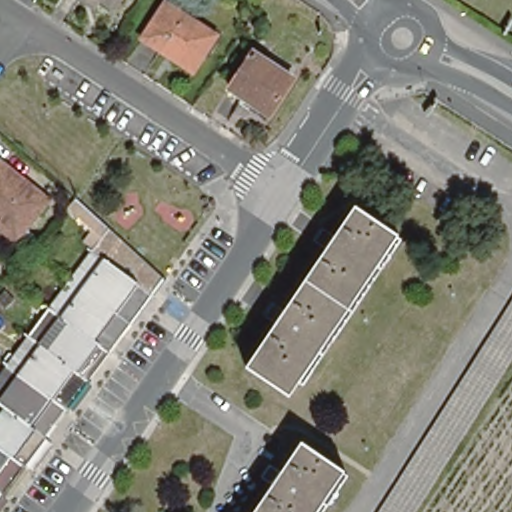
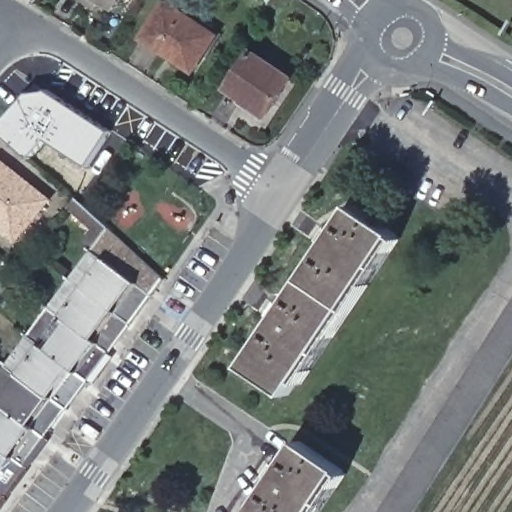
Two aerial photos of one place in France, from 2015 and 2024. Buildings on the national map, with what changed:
unchanged [(101,0),(120,0),(115,9),(101,0)]
unchanged [(191,73),(141,41),(166,4),(215,37),(191,73)]
unchanged [(297,79),(274,114),(234,89),(257,54),(297,79)]
new [(48,138),(31,157),(0,130),(0,126),(28,94),(49,90),(111,131),(89,166),(48,138)]
unchanged [(13,241),(0,231),(0,162),(46,200),(13,241)]
unchanged [(398,234),(289,397),(245,368),(354,206),(398,234)]
unchanged [(156,279),(123,324),(64,280),(102,229),(156,279)]
unchanged [(103,353),(43,309),(64,280),(123,324),(103,353)]
unchanged [(382,507),(512,301),(512,353),(444,461),(412,512),(378,512),(382,507)]
unchanged [(103,353),(81,379),(22,337),(43,309),(103,353)]
unchanged [(61,409),(1,366),(22,337),(81,379),(61,409)]
unchanged [(39,438),(0,410),(0,368),(1,366),(61,409),(39,438)]
unchanged [(0,453),(0,410),(39,438),(18,466),(0,453)]
unchanged [(348,471),(319,512),(259,512),(307,443),(348,471)]
unchanged [(0,490),(0,453),(18,466),(0,490)]

